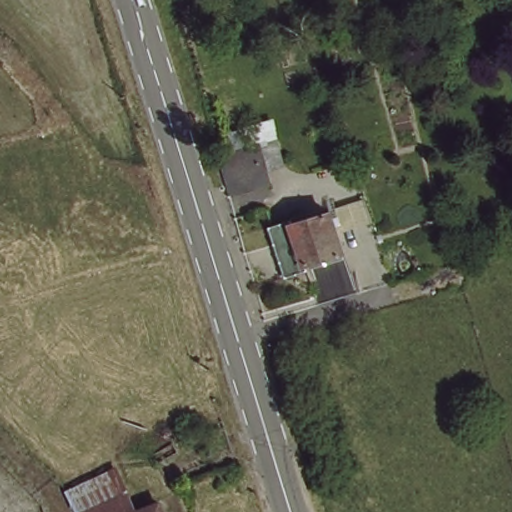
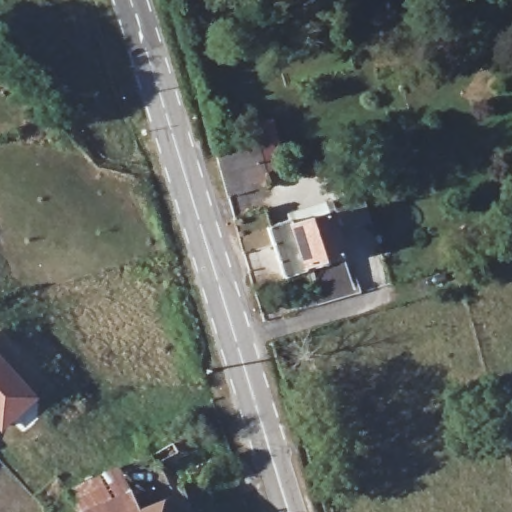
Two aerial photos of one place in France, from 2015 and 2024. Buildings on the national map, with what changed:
unchanged [(262,185),(230,192),(220,154),(252,145),(262,185)]
unchanged [(343,245),(305,262),(290,225),(328,207),(343,245)]
unchanged [(282,275),(263,225),(287,215),(290,225),(305,262),(306,266),(282,275)]
unchanged [(305,262),(343,245),(357,278),(319,295),(306,266),(305,262)]
new [(0,432),(0,356),(38,397),(0,432)]
unchanged [(132,493),(82,507),(72,479),(123,463),(132,493)]
unchanged [(138,510),(164,504),(166,512),(84,512),(82,507),(132,493),(138,510)]

